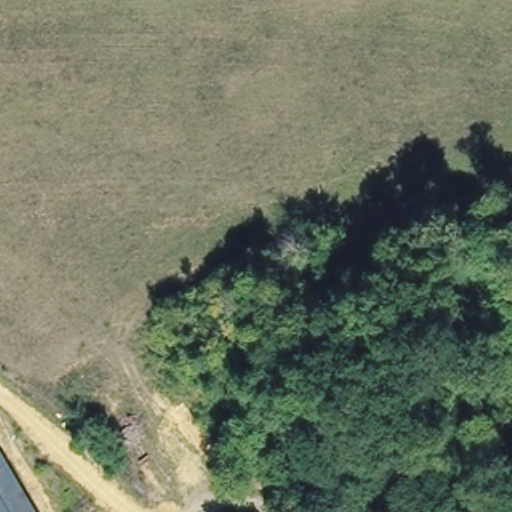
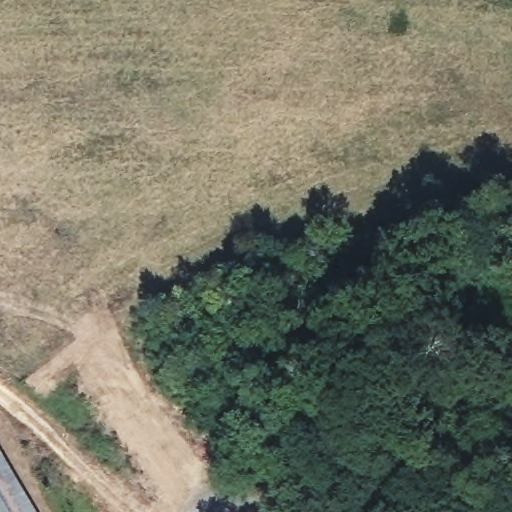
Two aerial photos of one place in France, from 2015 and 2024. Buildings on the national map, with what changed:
unchanged [(0,453),(34,512),(0,512),(0,453)]

